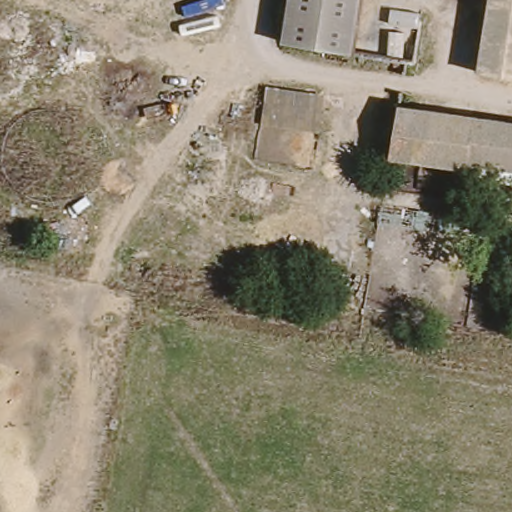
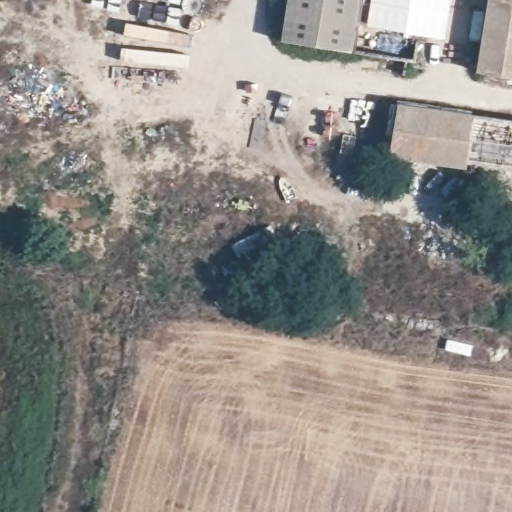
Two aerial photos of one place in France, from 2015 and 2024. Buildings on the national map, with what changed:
unchanged [(280,45),(286,0),(360,0),(351,55),(280,45)]
new [(371,0),(450,0),(444,39),(366,26),(371,0)]
unchanged [(477,70),(486,0),(512,0),(512,76),(477,70)]
unchanged [(512,122),(512,172),(462,164),(461,170),(386,159),(395,104),(512,122)]

